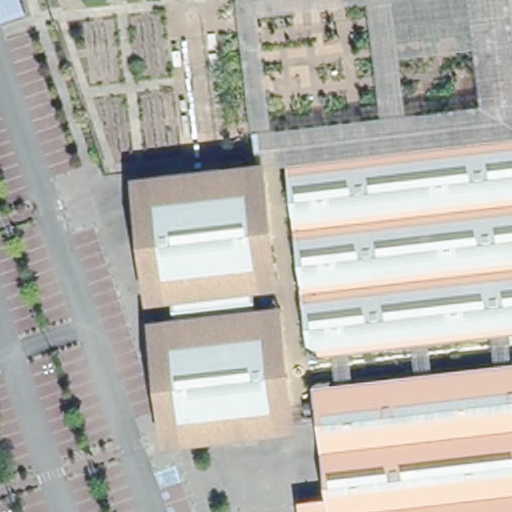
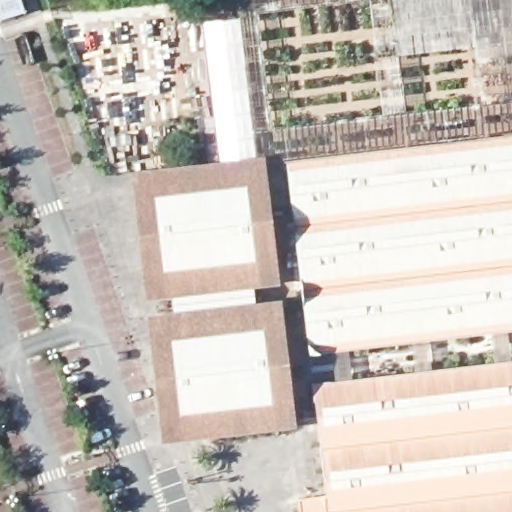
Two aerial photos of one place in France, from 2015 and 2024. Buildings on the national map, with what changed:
new [(239,18),(255,156),(219,161),(203,22),(239,18)]
unchanged [(512,141),(512,338),(306,362),(284,168),(512,141)]
unchanged [(186,439),(173,324),(180,324),(177,295),(170,296),(156,181),(253,169),(267,285),(259,286),(262,314),(270,313),(283,429),(186,439)]
unchanged [(265,169),(278,284),(267,285),(253,169),(265,169)]
unchanged [(156,181),(170,296),(158,298),(145,182),(156,181)]
unchanged [(281,312),(295,427),(283,429),(270,313),(281,312)]
unchanged [(173,324),(186,439),(175,441),(161,325),(173,324)]
unchanged [(294,503),(322,500),(309,390),(512,366),(512,512),(295,512),(294,503)]

